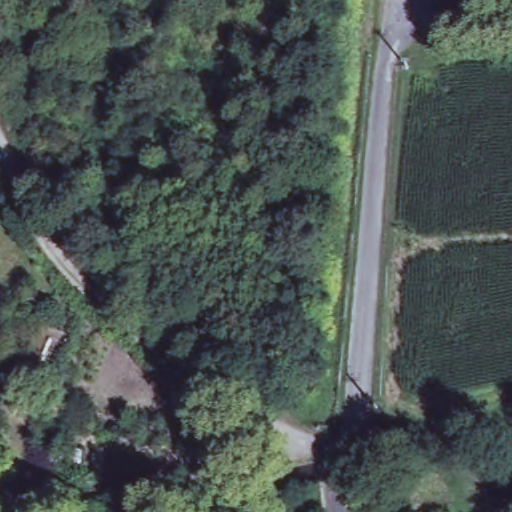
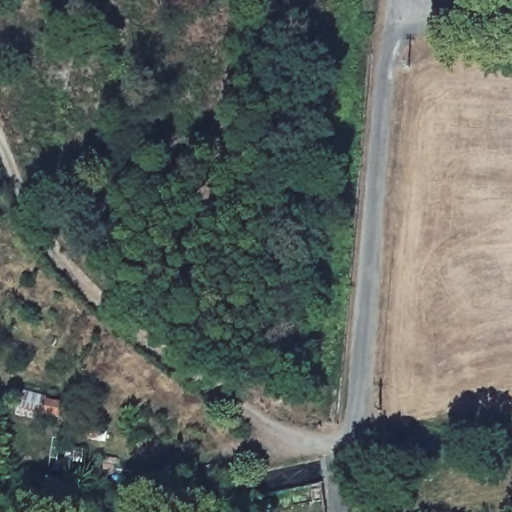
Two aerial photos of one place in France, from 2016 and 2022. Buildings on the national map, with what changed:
unchanged [(16,390),(60,399),(58,421),(9,408),(16,390)]

